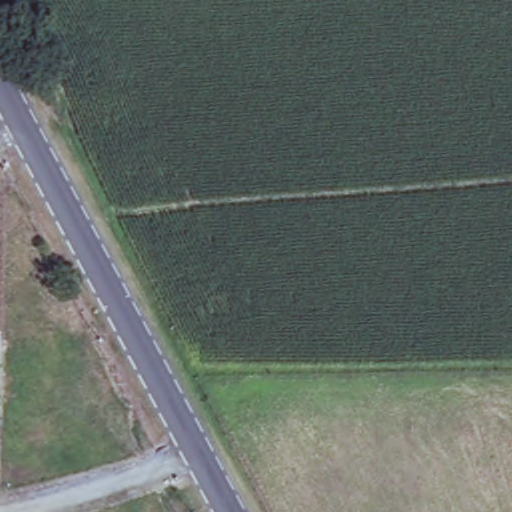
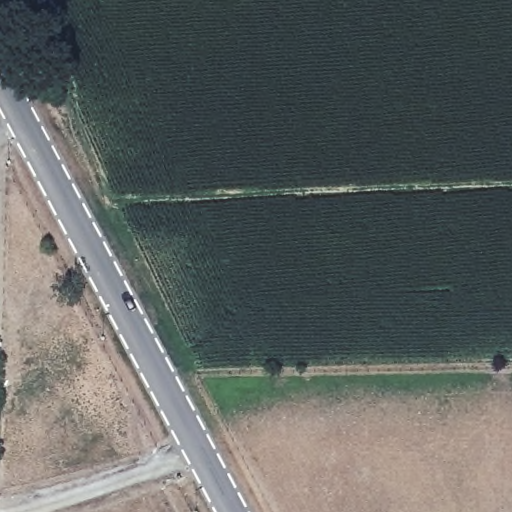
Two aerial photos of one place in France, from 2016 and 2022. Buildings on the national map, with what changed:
[]

